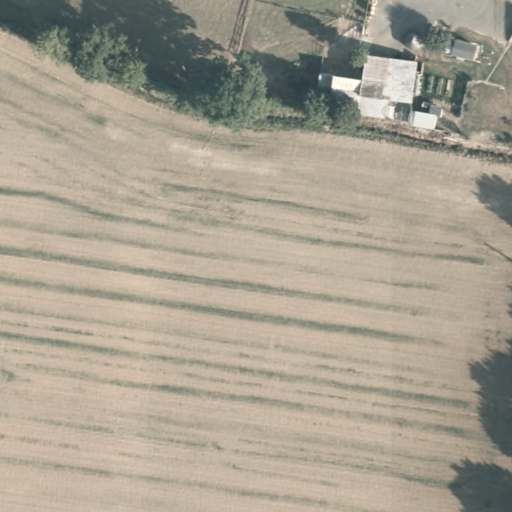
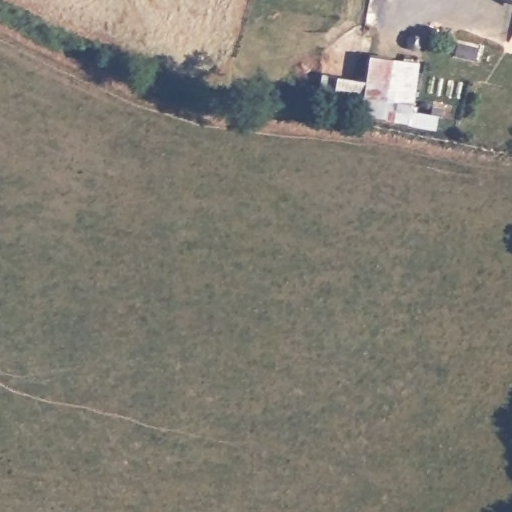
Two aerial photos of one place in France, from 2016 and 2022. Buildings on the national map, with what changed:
unchanged [(416,64),(407,125),(363,119),(370,73),(373,56),(416,64)]

